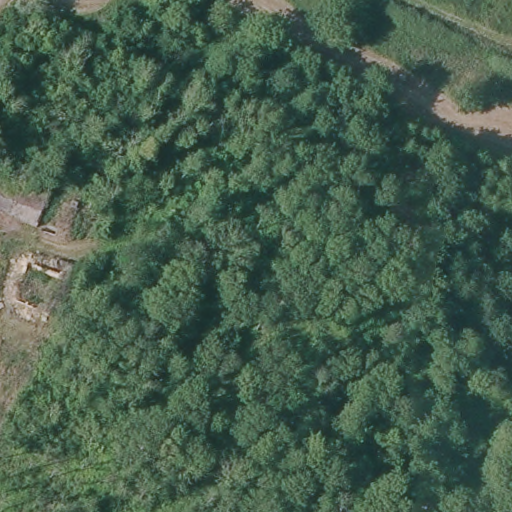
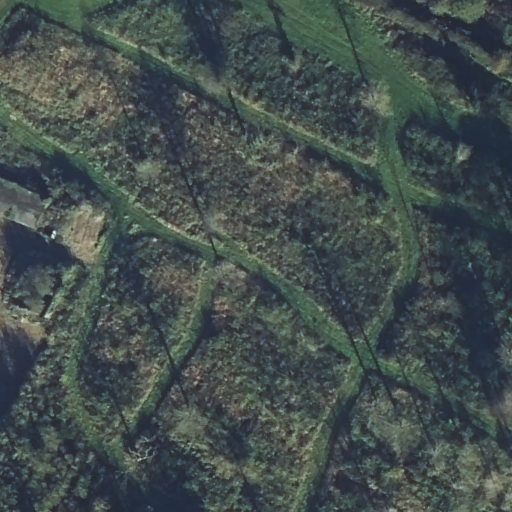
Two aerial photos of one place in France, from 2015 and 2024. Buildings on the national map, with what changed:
unchanged [(25,222),(0,209),(0,175),(40,193),(25,222)]

